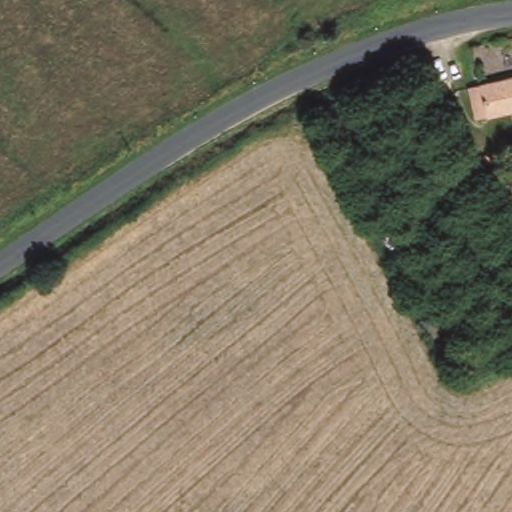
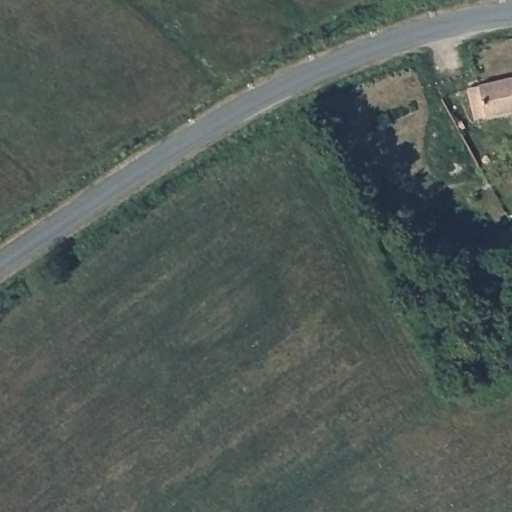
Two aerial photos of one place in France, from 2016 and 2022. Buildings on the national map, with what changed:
unchanged [(512,76),(512,111),(479,118),(471,85),(512,76)]
unchanged [(492,168),(499,183),(491,187),(483,172),(492,168)]

